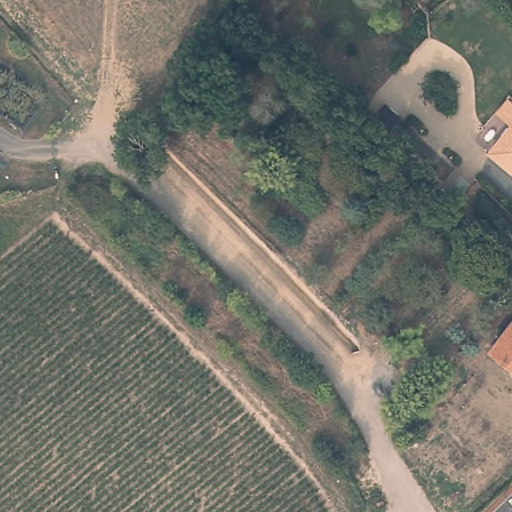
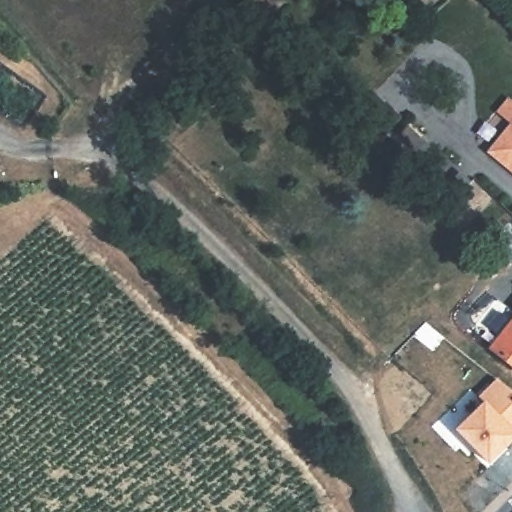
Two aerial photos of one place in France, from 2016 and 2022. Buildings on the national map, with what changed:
unchanged [(509,126),(498,117),(510,102),(512,104),(512,128),(509,126)]
unchanged [(492,157),(497,151),(512,132),(512,173),(503,166),(492,157)]
unchanged [(491,352),(512,324),(512,369),(491,352)]
new [(490,408),(482,402),(502,381),(512,389),(512,451),(496,467),(463,436),(490,408)]

